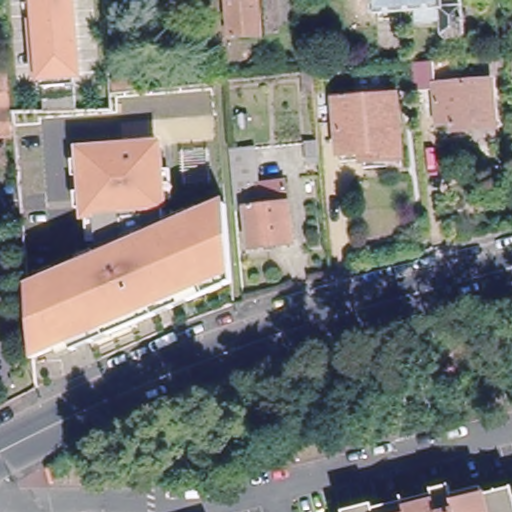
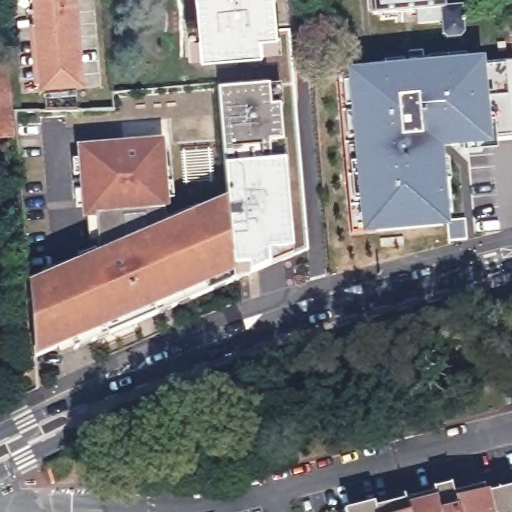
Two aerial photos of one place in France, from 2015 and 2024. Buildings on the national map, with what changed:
unchanged [(85,82),(87,115),(55,117),(53,85),(48,85),(40,0),(83,0),(90,82),(85,82)]
new [(187,52),(185,20),(197,18),(195,0),(274,0),(278,44),(187,52)]
demolished [(232,34),(229,0),(260,0),(262,30),(232,34)]
unchanged [(461,0),(464,26),(460,32),(446,33),(442,29),(441,16),(417,19),(416,6),(375,10),(374,0),(442,0),(443,0),(461,0)]
new [(484,60),(512,60),(512,131),(489,132),(489,145),(442,150),(446,230),(360,237),(346,69),(484,60)]
unchanged [(11,134),(0,135),(0,62),(6,62),(11,134)]
demolished [(496,129),(457,134),(456,128),(440,129),(436,93),(416,95),(413,68),(435,66),(437,90),(492,85),(496,129)]
new [(228,200),(223,166),(216,90),(278,85),(289,255),(235,278),(228,200)]
demolished [(395,95),(402,155),(342,160),(337,100),(395,95)]
demolished [(322,153),(311,154),(309,135),(321,135),(322,153)]
unchanged [(34,355),(28,286),(42,284),(41,280),(101,255),(96,212),(86,213),(86,205),(76,206),(74,191),(84,190),(81,172),(71,174),(70,159),(80,157),(79,149),(156,140),(160,166),(170,165),(174,195),(164,196),(166,215),(198,202),(202,211),(228,200),(235,278),(227,281),(208,290),(193,296),(175,303),(70,348),(45,360),(41,352),(34,355)]
demolished [(256,145),(259,180),(283,177),(286,197),(291,198),(297,235),(252,243),(245,206),(238,205),(233,147),(256,145)]
demolished [(512,387),(512,399),(510,387),(512,387)]
unchanged [(336,508),(365,500),(366,503),(405,493),(407,501),(421,497),(432,494),(430,483),(448,479),(450,485),(478,477),(480,487),(510,480),(512,489),(512,512),(337,512),(336,508)]

